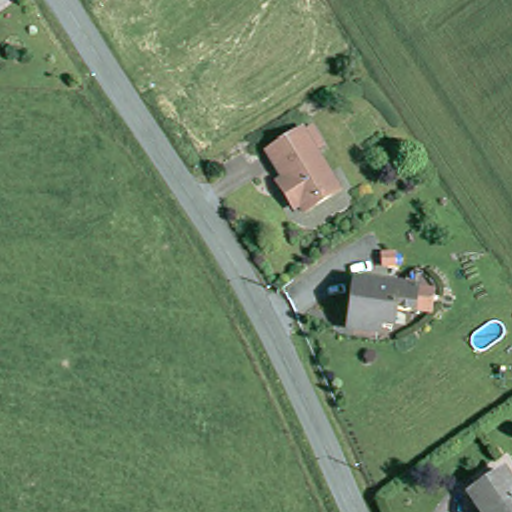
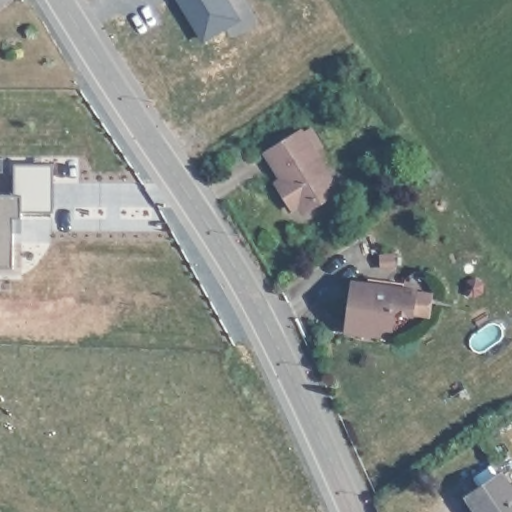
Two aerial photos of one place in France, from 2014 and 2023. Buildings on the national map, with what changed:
new [(205,38),(183,0),(227,0),(229,4),(237,18),(225,26),(205,38)]
unchanged [(274,154),(309,131),(311,135),(320,129),(331,146),(322,153),(345,193),(310,216),(306,210),(300,213),(288,192),(284,185),(290,181),(274,154)]
new [(15,162),(54,163),(53,209),(22,208),(21,231),(14,232),(13,266),(0,265),(0,193),(15,193),(15,162)]
unchanged [(382,258),(380,245),(392,245),(394,257),(382,258)]
unchanged [(394,304),(391,322),(372,319),(370,327),(347,324),(355,274),(415,283),(415,284),(429,286),(427,307),(412,305),(412,307),(394,304)]
unchanged [(470,491),(504,468),(512,481),(512,512),(483,512),(470,491)]

